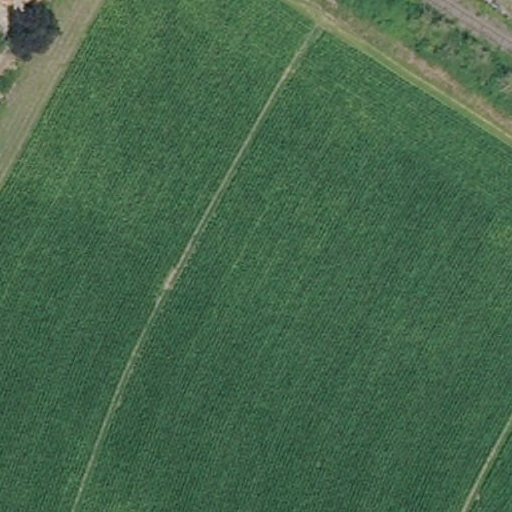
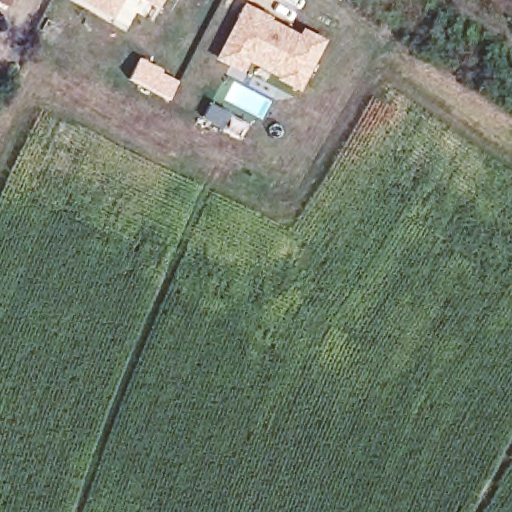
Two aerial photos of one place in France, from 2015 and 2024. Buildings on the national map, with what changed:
new [(112,19),(78,0),(123,0),(112,19)]
new [(159,9),(143,0),(164,0),(159,9)]
new [(272,17),(271,20),(299,35),(302,28),(325,40),(301,91),(277,81),(280,75),(249,62),(243,72),(214,60),(243,2),(272,17)]

